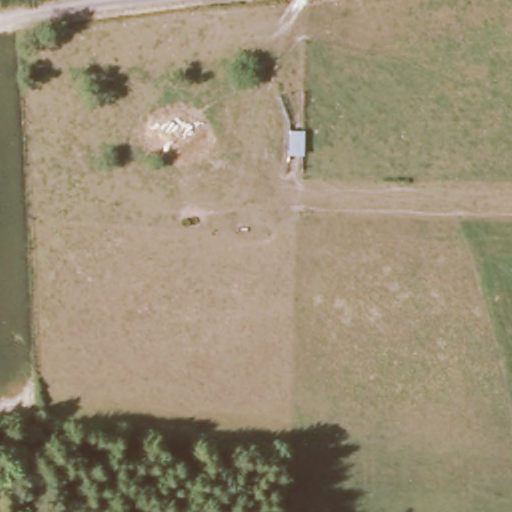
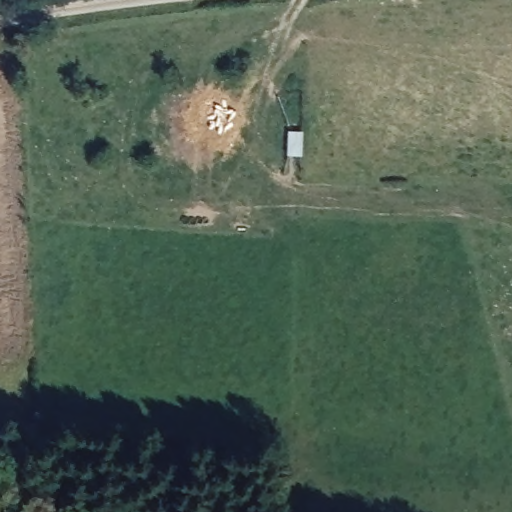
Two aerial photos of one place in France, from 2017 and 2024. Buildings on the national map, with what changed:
unchanged [(305,160),(286,161),(286,129),(307,131),(305,160)]

